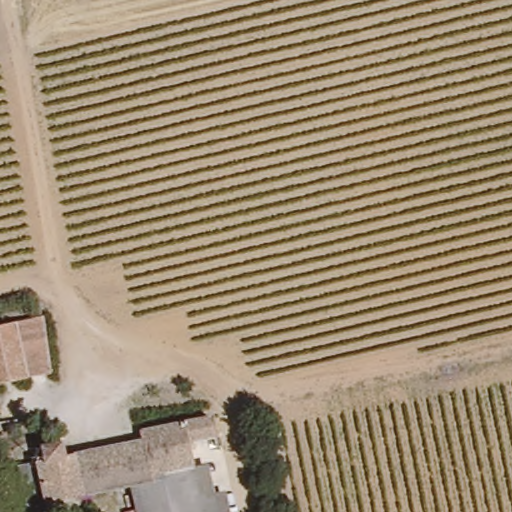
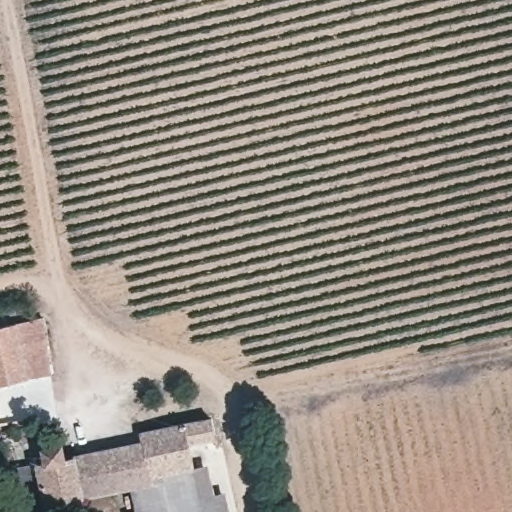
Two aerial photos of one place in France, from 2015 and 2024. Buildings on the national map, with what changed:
unchanged [(41,320),(52,378),(0,387),(0,329),(41,320)]
unchanged [(139,435),(208,418),(214,442),(189,447),(204,512),(136,512),(130,489),(149,485),(140,441),(139,435)]
unchanged [(42,463),(38,449),(62,444),(66,456),(140,441),(149,485),(130,489),(44,506),(40,487),(22,490),(18,467),(42,463)]

